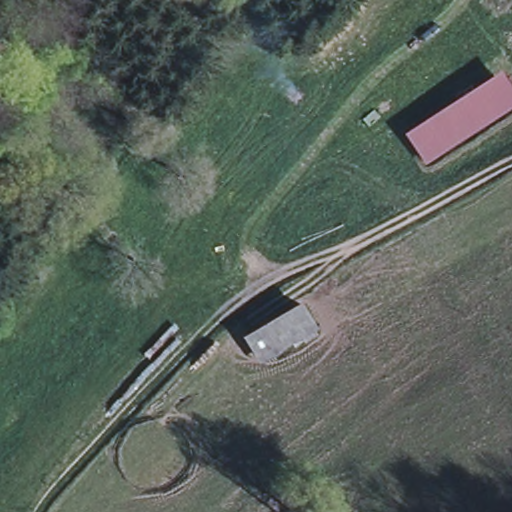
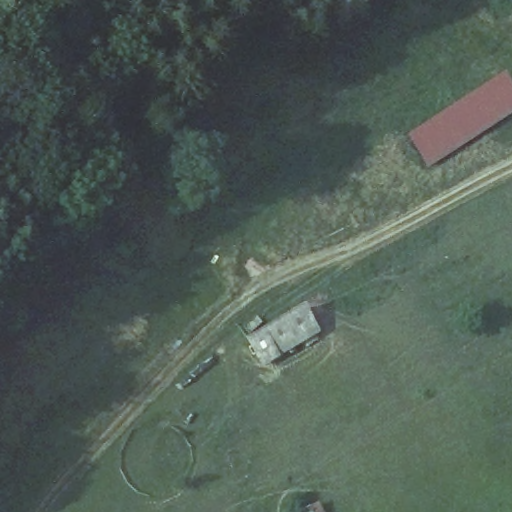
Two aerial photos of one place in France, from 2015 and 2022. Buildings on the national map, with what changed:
unchanged [(500,81),(512,101),(512,110),(427,165),(410,140),(500,81)]
unchanged [(320,333),(260,368),(245,341),(303,305),(320,333)]

